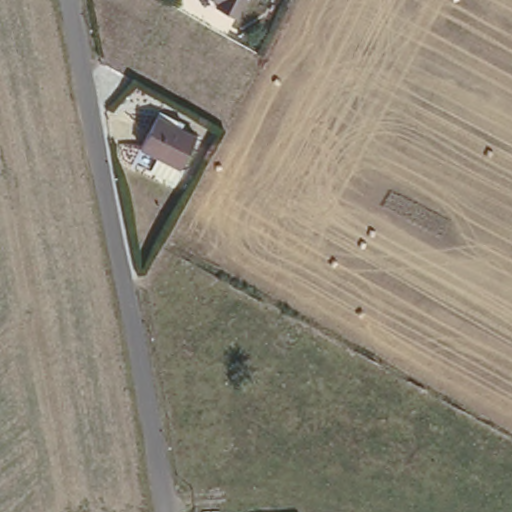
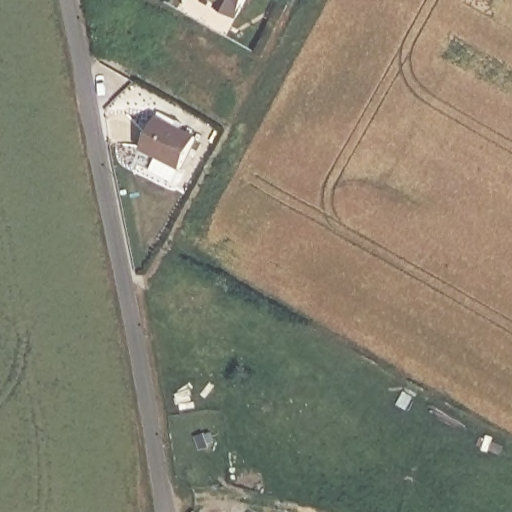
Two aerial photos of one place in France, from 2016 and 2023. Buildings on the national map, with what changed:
unchanged [(220,0),(247,0),(239,14),(218,2),(220,0)]
unchanged [(157,153),(140,144),(158,107),(177,116),(178,115),(183,118),(180,124),(196,132),(173,177),(150,166),(157,153)]

